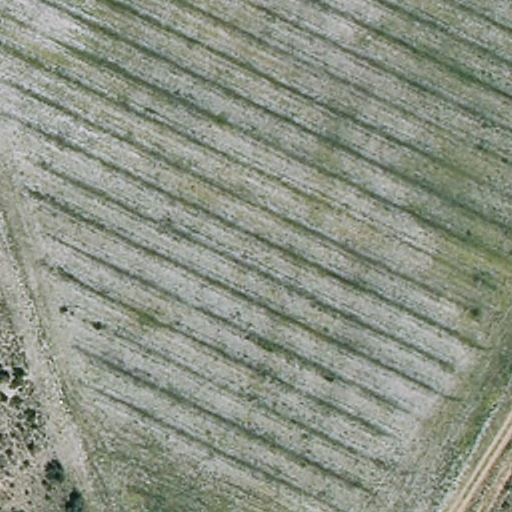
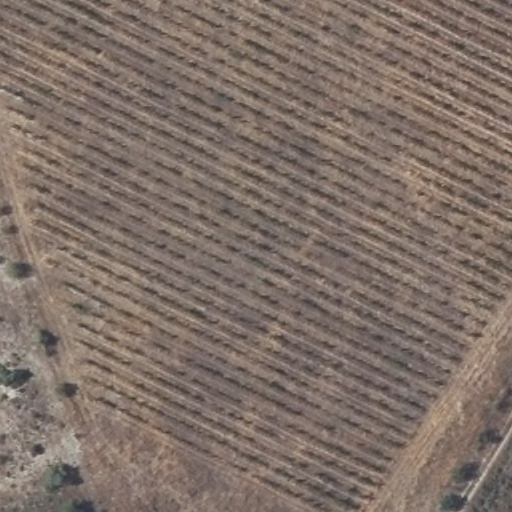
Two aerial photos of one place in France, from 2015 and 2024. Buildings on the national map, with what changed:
[]

